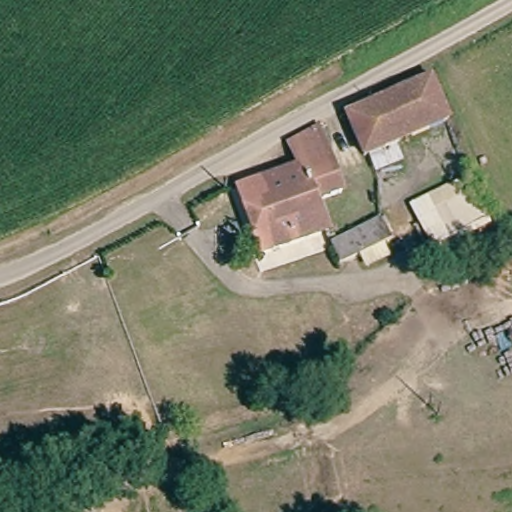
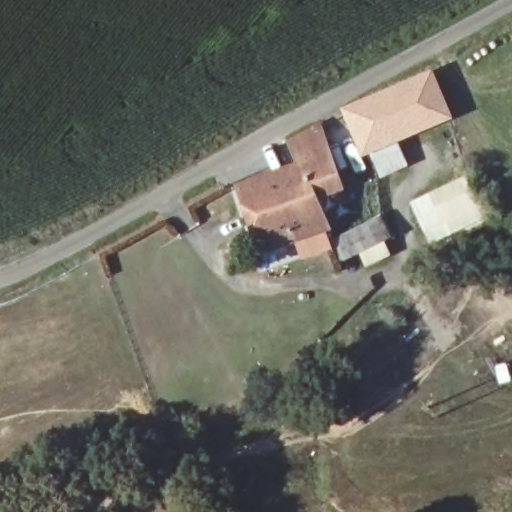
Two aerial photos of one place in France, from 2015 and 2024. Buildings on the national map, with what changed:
unchanged [(369,155),(364,156),(346,112),(434,73),(454,117),(399,142),(407,160),(377,175),(369,155)]
unchanged [(320,127),(345,188),(317,200),(327,227),(314,232),(307,216),(294,221),(285,196),(291,194),(283,172),(299,166),(291,142),(320,127)]
unchanged [(285,196),(294,221),(307,216),(314,232),(272,247),(279,267),(274,269),(269,271),(237,189),(283,172),(291,194),(285,196)]
unchanged [(466,174),(495,226),(441,258),(409,202),(466,174)]
unchanged [(392,235),(340,255),(334,237),(385,218),(392,235)]

